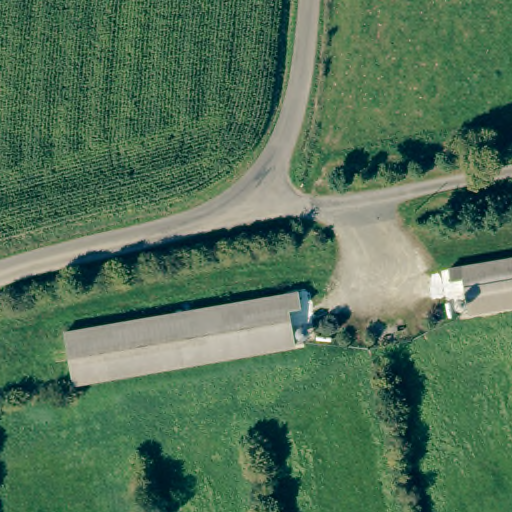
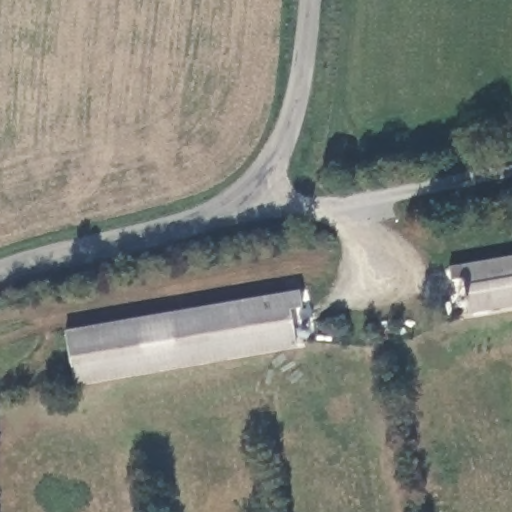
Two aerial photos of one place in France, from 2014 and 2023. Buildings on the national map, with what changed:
unchanged [(512,252),(512,299),(468,307),(461,273),(449,275),(447,263),(512,252)]
unchanged [(298,287),(301,301),(289,304),(295,340),(71,379),(63,329),(298,287)]

